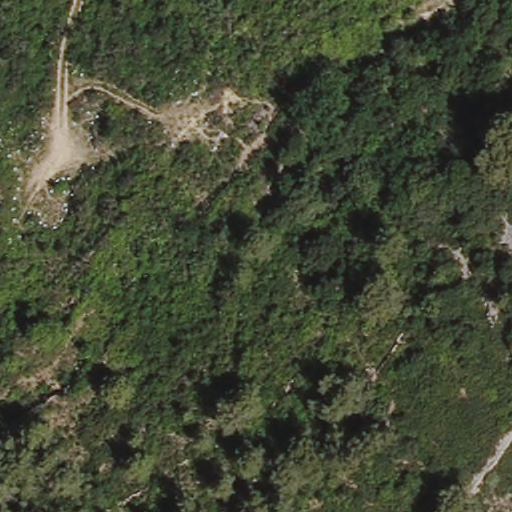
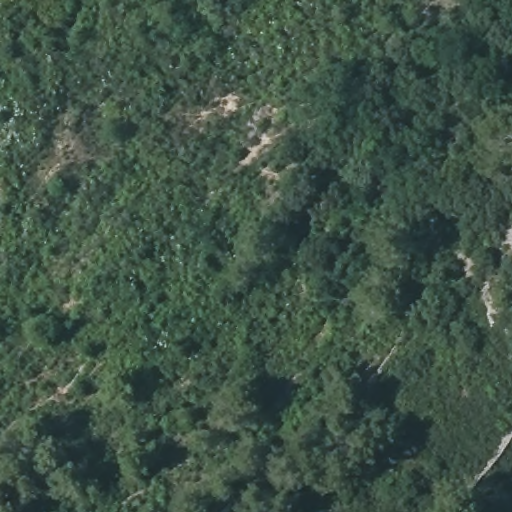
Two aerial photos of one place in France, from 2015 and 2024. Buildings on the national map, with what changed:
[]

